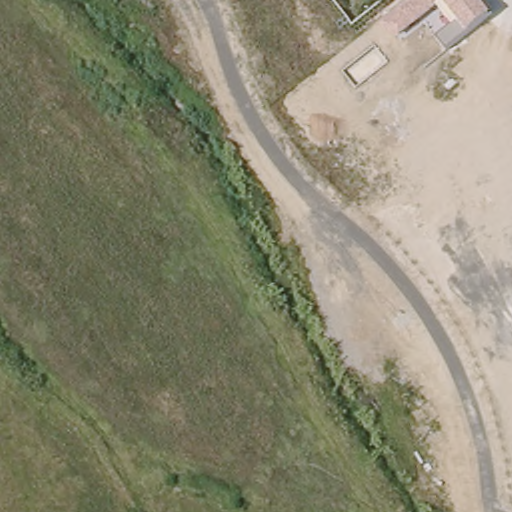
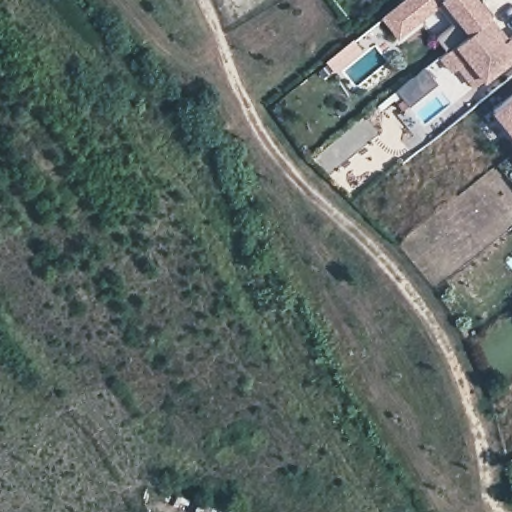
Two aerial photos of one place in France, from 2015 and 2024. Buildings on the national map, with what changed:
unchanged [(399,0),(478,0),(492,17),(470,35),(449,49),(437,34),(452,23),(435,3),(398,34),(380,15),(399,0)]
new [(512,52),(512,59),(482,80),(472,87),(457,67),(450,72),(440,56),(449,49),(470,35),(487,20),(512,52)]
new [(512,94),(512,136),(492,110),(512,94)]

